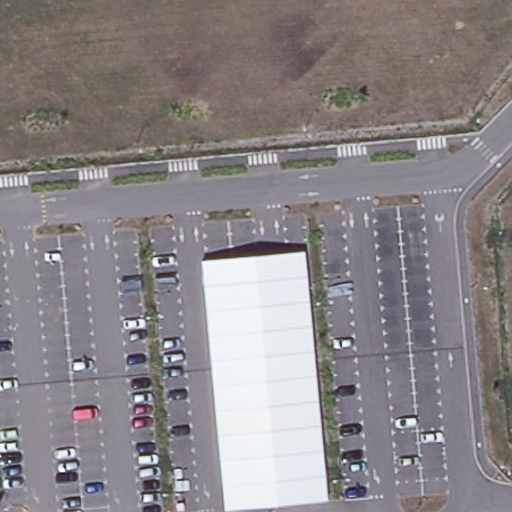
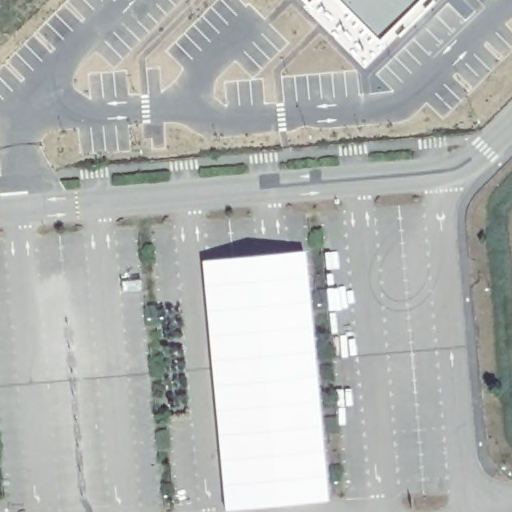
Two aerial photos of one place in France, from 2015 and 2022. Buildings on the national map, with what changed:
new [(302,0),(430,0),(364,66),(302,0)]

